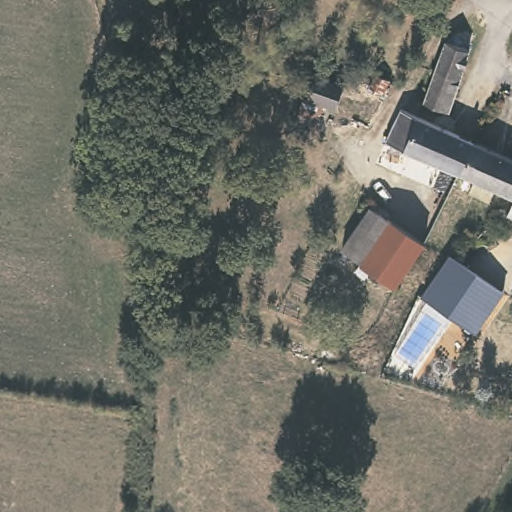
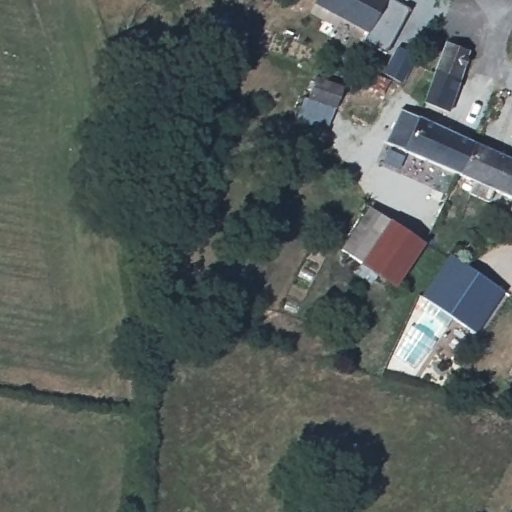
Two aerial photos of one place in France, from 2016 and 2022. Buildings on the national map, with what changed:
new [(387,53),(363,40),(366,33),(312,3),(314,0),(394,0),(409,10),(387,53)]
unchanged [(425,104),(437,73),(447,45),(470,53),(461,82),(450,112),(425,104)]
unchanged [(385,80),(377,95),(362,89),(371,76),(385,80)]
unchanged [(311,81),(342,92),(336,114),(322,109),(315,129),(292,121),(298,102),(302,102),(311,81)]
unchanged [(385,147),(400,113),(475,148),(459,181),(385,147)]
unchanged [(475,148),(512,165),(512,206),(459,181),(475,148)]
unchanged [(512,208),(512,223),(507,220),(512,208)]
unchanged [(388,226),(362,264),(341,248),(356,223),(365,209),(388,226)]
unchanged [(418,247),(394,285),(362,264),(388,226),(418,247)]
unchanged [(478,338),(436,311),(422,302),(437,267),(448,257),(463,266),(506,294),(478,338)]

